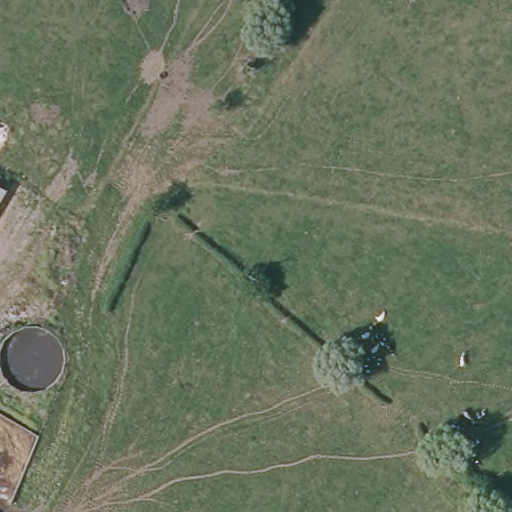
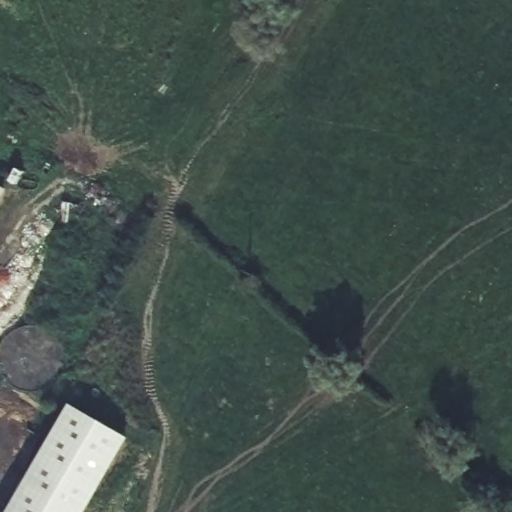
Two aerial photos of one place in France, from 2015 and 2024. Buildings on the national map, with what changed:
unchanged [(0,199),(0,188),(5,191),(0,199)]
new [(126,439),(84,512),(5,512),(67,404),(126,439)]

